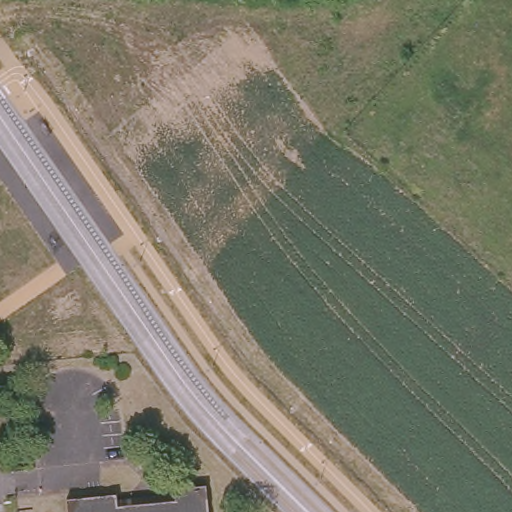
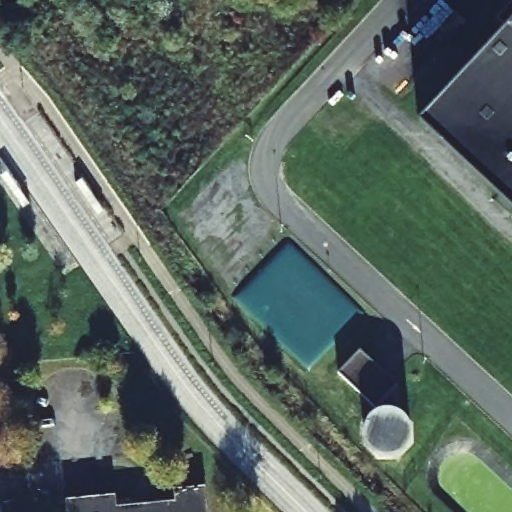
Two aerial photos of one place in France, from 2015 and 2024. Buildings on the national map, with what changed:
new [(420,121),(509,26),(499,19),(512,6),(512,207),(420,121)]
new [(361,349),(398,385),(398,412),(403,415),(408,421),(410,425),(411,433),(410,441),(406,448),(403,451),(396,455),(387,457),(380,455),(372,451),(370,448),(367,445),(365,437),(365,429),(367,421),(370,418),(372,415),(379,411),(339,373),(361,349)]
unchanged [(68,512),(67,500),(207,486),(210,512),(68,512)]

